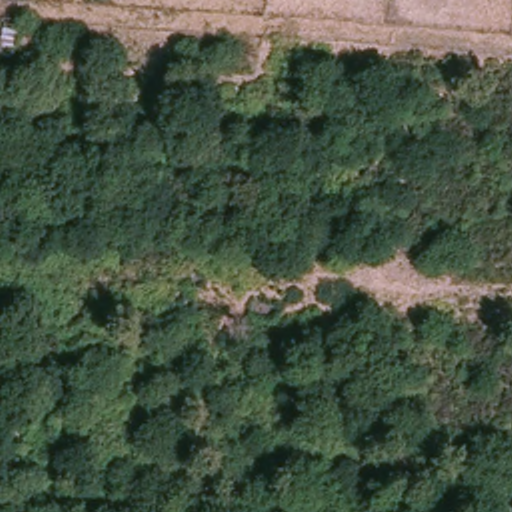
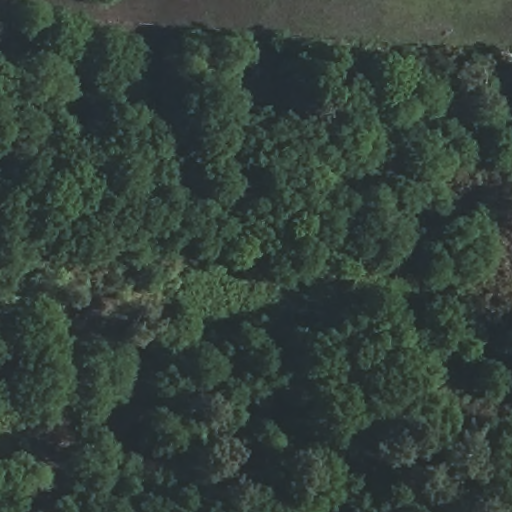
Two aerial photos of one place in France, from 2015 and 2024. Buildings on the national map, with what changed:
unchanged [(0,26),(0,20),(14,20),(12,60),(0,60),(0,26)]

